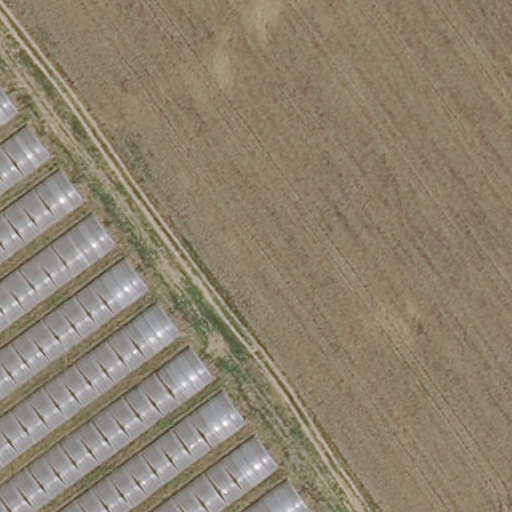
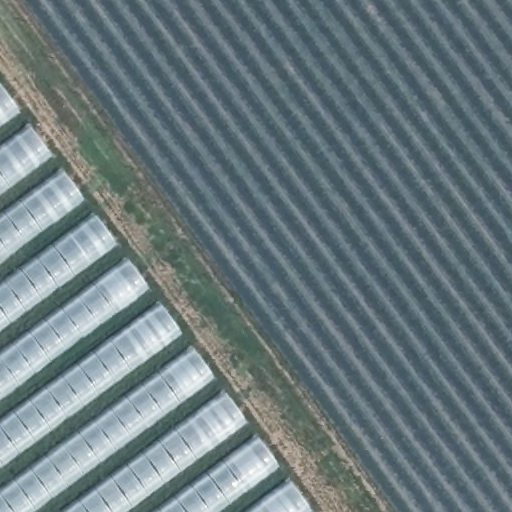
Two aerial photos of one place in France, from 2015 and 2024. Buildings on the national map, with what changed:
unchanged [(310,512),(0,512),(0,87),(128,262),(310,512)]

